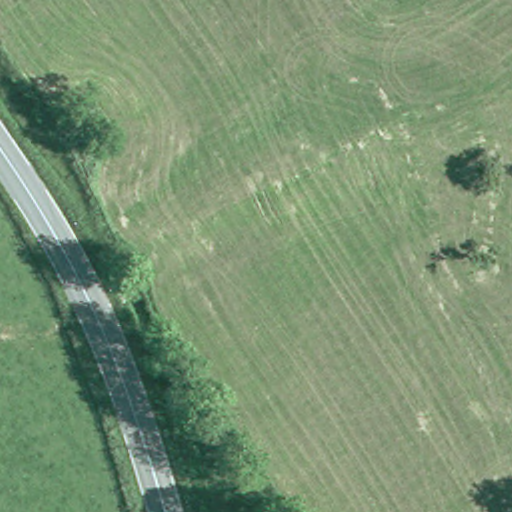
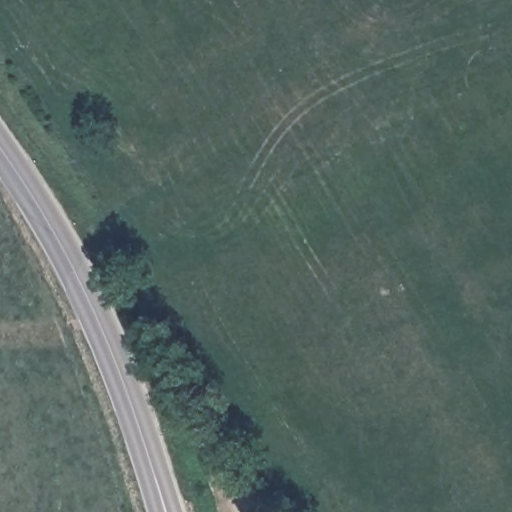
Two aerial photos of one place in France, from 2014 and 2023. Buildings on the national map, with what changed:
[]

